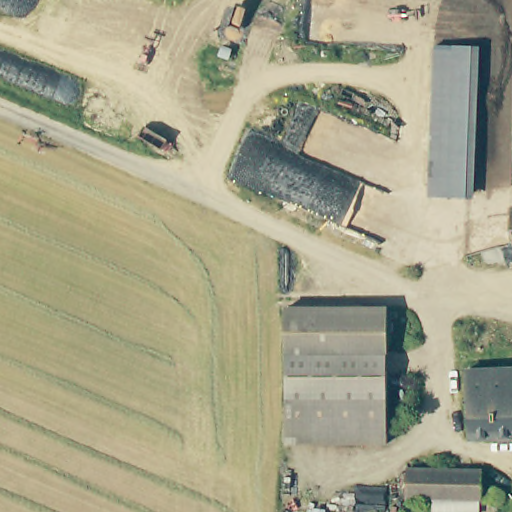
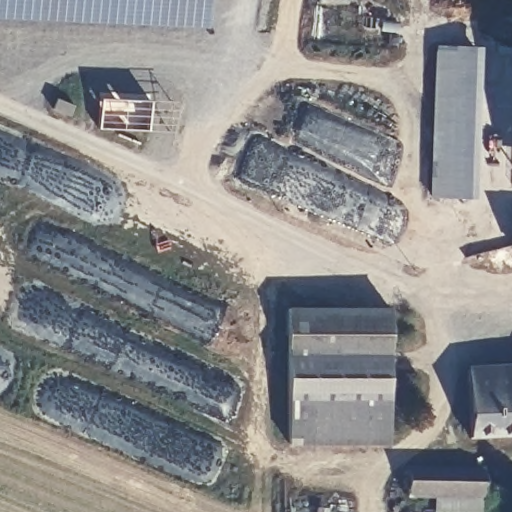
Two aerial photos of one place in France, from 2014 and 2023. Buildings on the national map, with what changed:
new [(202,27),(0,18),(0,0),(204,0),(202,27)]
unchanged [(479,47),(474,193),(436,191),(440,47),(479,47)]
new [(512,142),(512,171),(510,171),(512,142)]
unchanged [(512,243),(510,243),(511,206),(512,206),(512,243)]
unchanged [(291,302),(393,302),(392,394),(291,394),(291,302)]
unchanged [(470,365),(512,364),(512,432),(472,433),(470,365)]
unchanged [(392,394),(391,440),(290,439),(291,394),(392,394)]
unchanged [(483,498),(455,498),(406,498),(407,472),(430,472),(455,472),(483,473),(483,498)]

